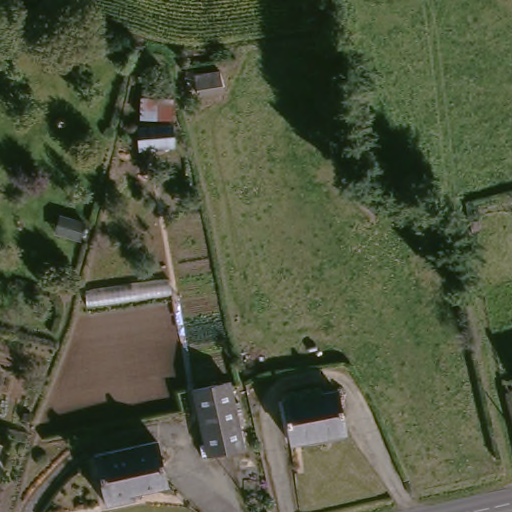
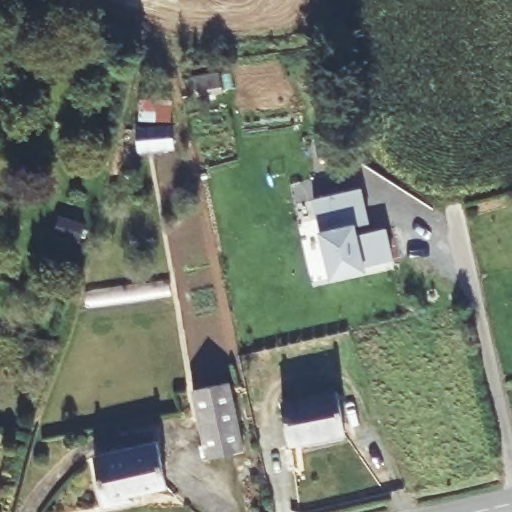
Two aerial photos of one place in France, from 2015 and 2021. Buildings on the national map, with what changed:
unchanged [(172,145),(165,167),(135,159),(140,136),(172,145)]
new [(361,189),(371,231),(386,229),(393,259),(365,264),(366,271),(329,279),(319,231),(312,200),(361,189)]
unchanged [(230,384),(243,450),(204,457),(192,391),(230,384)]
unchanged [(337,395),(346,435),(291,446),(283,405),(337,395)]
unchanged [(156,440),(166,488),(128,497),(128,502),(106,507),(94,455),(156,440)]

